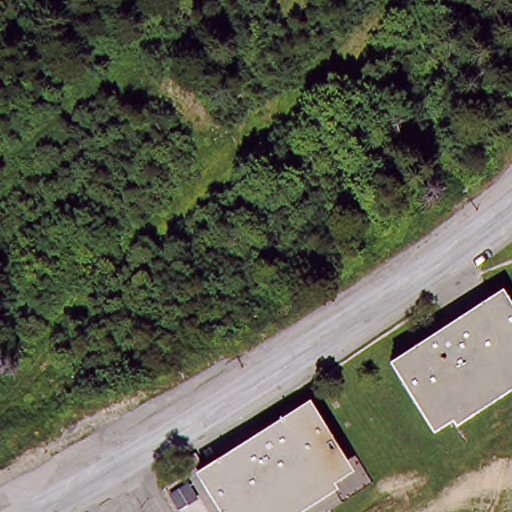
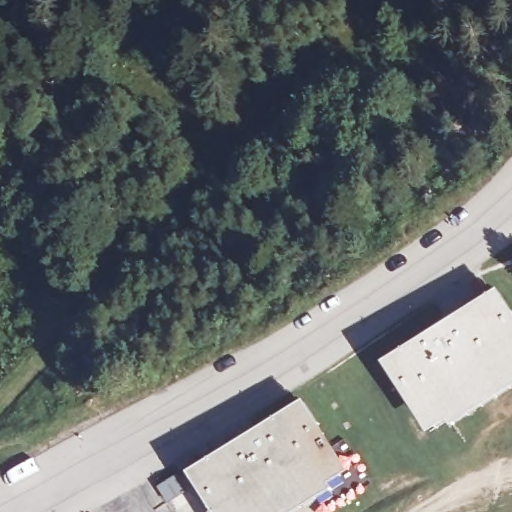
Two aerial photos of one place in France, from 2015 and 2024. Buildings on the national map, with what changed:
unchanged [(399,362),(497,295),(512,315),(512,374),(460,411),(451,400),(435,411),(399,362)]
unchanged [(297,412),(332,461),(317,471),(327,483),(285,512),(223,512),(198,479),(297,412)]

